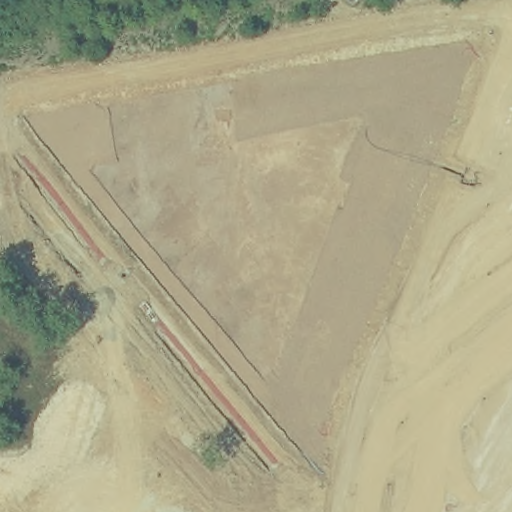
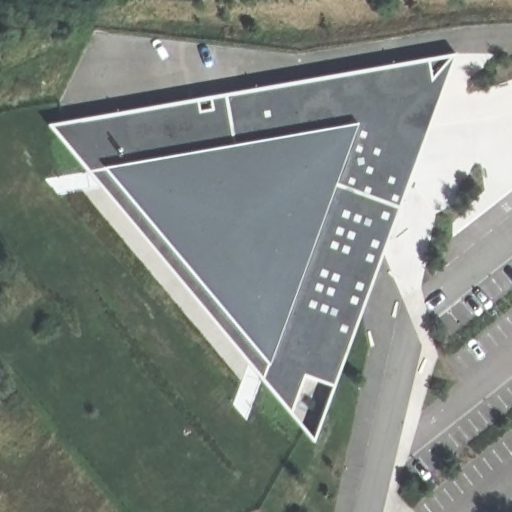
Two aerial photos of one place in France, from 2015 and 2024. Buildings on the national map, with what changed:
new [(456,54),(313,443),(48,125),(456,54)]

